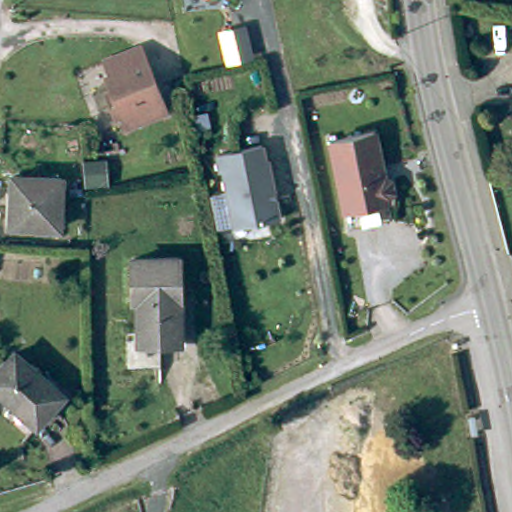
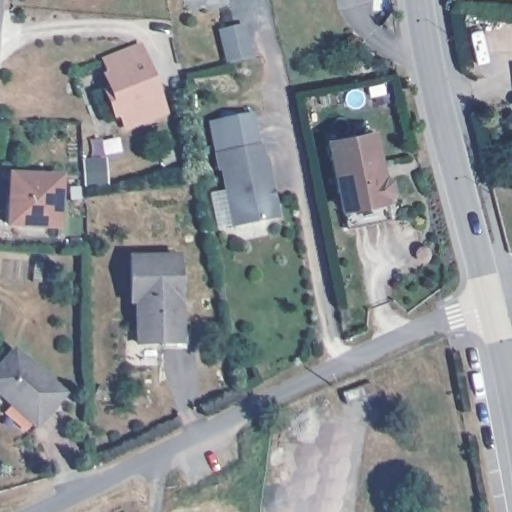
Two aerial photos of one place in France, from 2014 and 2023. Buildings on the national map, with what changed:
new [(228,61),(226,50),(222,33),(244,27),(248,44),(251,56),(228,61)]
unchanged [(132,46),(158,109),(120,124),(114,110),(110,111),(101,91),(105,88),(100,75),(104,73),(99,59),(132,46)]
new [(208,121),(254,114),(258,146),(214,156),(208,121)]
unchanged [(372,131),(380,165),(376,166),(378,175),(381,174),(388,179),(390,188),(386,196),(390,217),(345,227),(328,140),(372,131)]
unchanged [(258,146),(261,162),(264,161),(270,191),(268,191),(269,200),(272,200),(276,220),(232,229),(220,172),(217,172),(214,156),(258,146)]
unchanged [(65,180),(65,229),(16,227),(16,179),(65,180)]
unchanged [(180,255),(181,338),(141,338),(141,297),(134,297),(134,255),(180,255)]
unchanged [(22,351),(70,393),(43,425),(0,387),(0,375),(22,351)]

